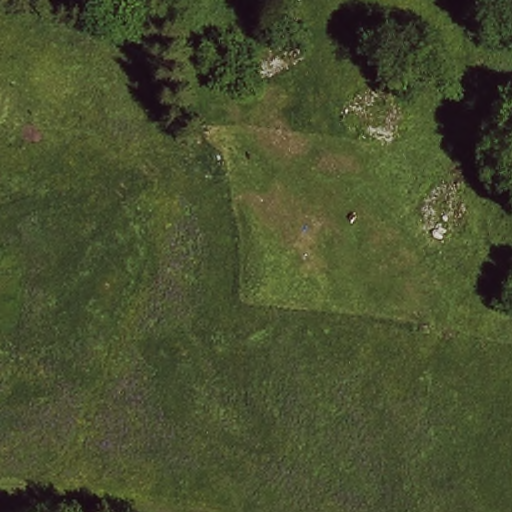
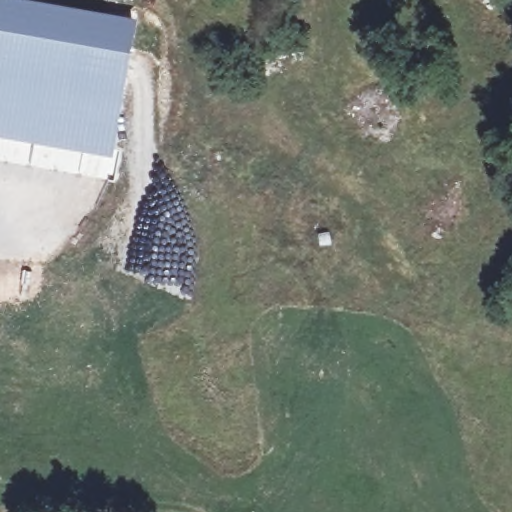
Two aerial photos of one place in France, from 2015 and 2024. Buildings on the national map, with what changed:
new [(119,117),(113,181),(0,160),(0,0),(33,0),(137,19),(119,117)]

